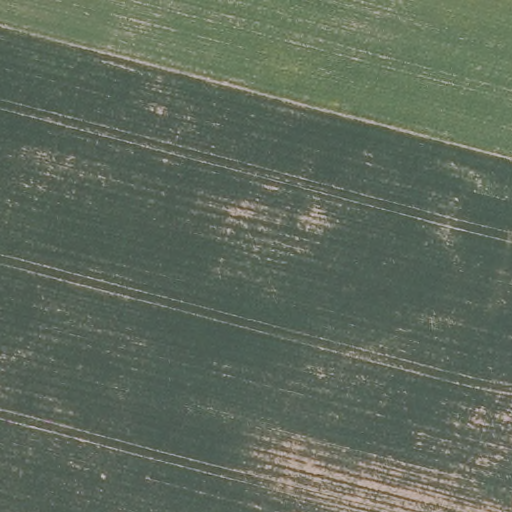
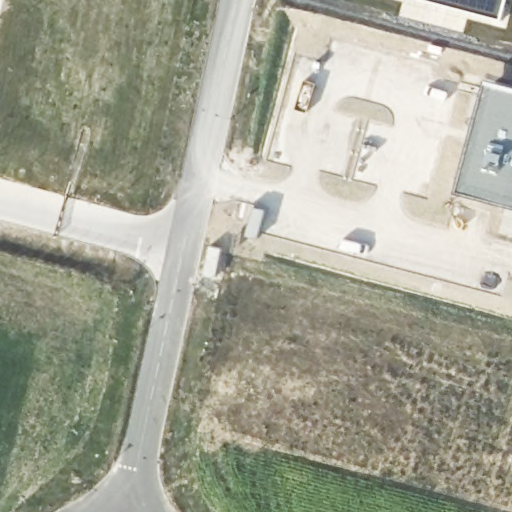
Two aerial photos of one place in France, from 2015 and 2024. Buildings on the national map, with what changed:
new [(502,20),(424,0),(508,0),(502,20)]
new [(512,84),(512,205),(457,191),(487,78),(512,84)]

